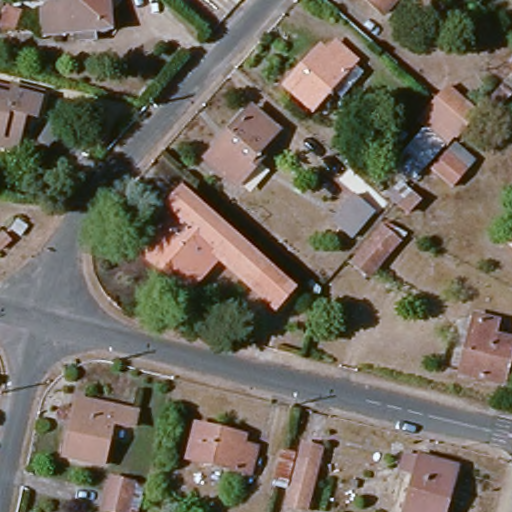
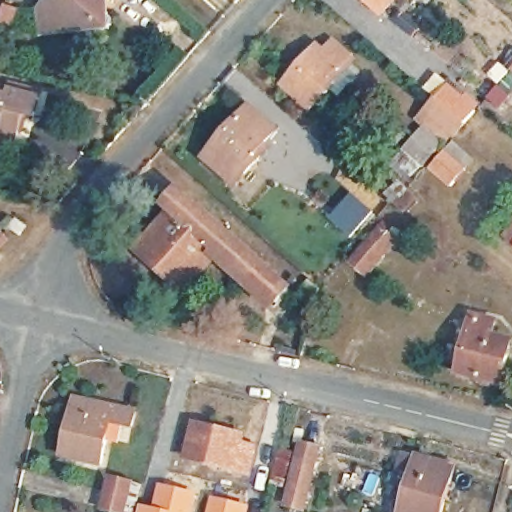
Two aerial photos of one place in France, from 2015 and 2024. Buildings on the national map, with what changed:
unchanged [(76,46),(74,37),(62,39),(40,42),(36,20),(43,11),(57,10),(55,0),(102,0),(105,16),(108,19),(110,22),(109,26),(107,32),(103,35),(97,37),(93,36),(90,34),(92,44),(76,46)]
unchanged [(379,16),(360,0),(394,0),(379,16)]
unchanged [(331,99),(322,90),(302,113),(276,89),(310,52),(317,58),(325,48),(345,65),(338,73),(348,81),(331,99)]
unchanged [(489,102),(512,78),(512,98),(499,111),(489,102)]
unchanged [(449,85),(478,111),(467,124),(455,137),(426,110),(437,98),(449,85)]
unchanged [(5,95),(7,89),(34,96),(28,120),(19,117),(8,154),(0,152),(0,93),(5,95)]
unchanged [(270,136),(257,150),(262,155),(231,189),(201,162),(245,114),(270,136)]
unchanged [(405,135),(392,150),(371,130),(385,116),(405,135)]
unchanged [(406,150),(425,128),(443,144),(413,176),(403,167),(413,156),(406,150)]
unchanged [(447,147),(458,157),(438,180),(426,170),(437,157),(447,147)]
unchanged [(408,213),(396,203),(387,196),(401,181),(410,189),(421,199),(408,213)]
unchanged [(163,213),(178,196),(287,292),(269,312),(212,261),(180,297),(134,256),(168,218),(163,213)]
unchanged [(367,217),(347,240),(329,225),(349,202),(367,217)]
unchanged [(21,218),(13,227),(3,218),(11,209),(21,218)]
unchanged [(397,240),(392,246),(395,249),(363,285),(354,277),(342,291),(335,285),(380,232),(397,240)]
unchanged [(512,250),(512,252),(511,251),(512,250)]
unchanged [(490,323),(486,335),(508,341),(497,385),(457,373),(470,317),(490,323)]
unchanged [(130,422),(127,435),(106,430),(97,473),(60,465),(73,409),(130,422)]
unchanged [(234,446),(232,455),(245,458),(240,482),(179,467),(187,435),(234,446)]
unchanged [(301,512),(295,512),(281,509),(285,493),(267,488),(275,453),(294,458),(296,450),(316,454),(301,512)]
unchanged [(400,512),(409,478),(394,474),(399,456),(414,460),(452,470),(441,512),(400,512)]
new [(152,506),(158,483),(196,492),(191,512),(136,512),(138,503),(152,506)]
unchanged [(126,512),(95,512),(102,485),(131,492),(126,512)]
new [(251,505),(250,512),(209,512),(212,496),(251,505)]

